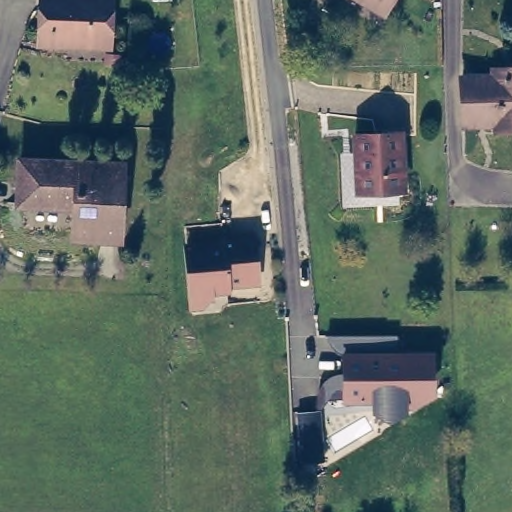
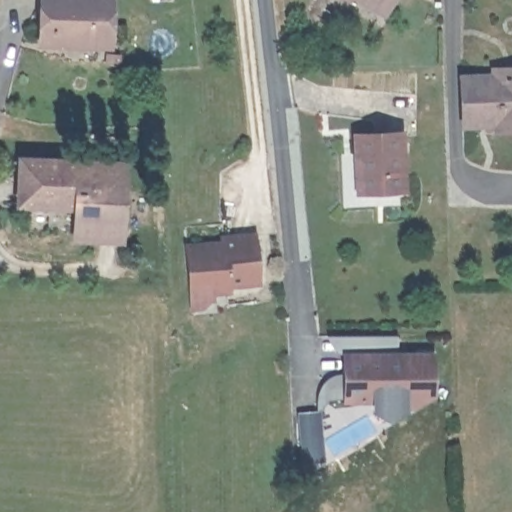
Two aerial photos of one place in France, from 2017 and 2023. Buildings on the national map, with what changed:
unchanged [(38,39),(39,0),(110,0),(109,30),(108,41),(68,40),(38,39)]
unchanged [(353,0),(349,5),(341,0),(353,0)]
unchanged [(366,3),(361,0),(389,0),(382,11),(366,3)]
unchanged [(464,79),(496,77),(495,69),(512,69),(512,127),(499,128),(498,123),(486,124),(466,124),(465,107),(464,79)]
unchanged [(402,132),(405,189),(360,193),(357,134),(402,132)]
unchanged [(123,163),(118,232),(75,231),(76,202),(19,199),(21,156),(123,163)]
unchanged [(191,307),(189,293),(185,244),(221,242),(221,237),(252,234),(256,282),(226,284),(227,289),(210,291),(211,299),(203,306),(191,307)]
unchanged [(376,402),(345,402),(344,357),(404,358),(403,397),(403,402),(376,402)]

